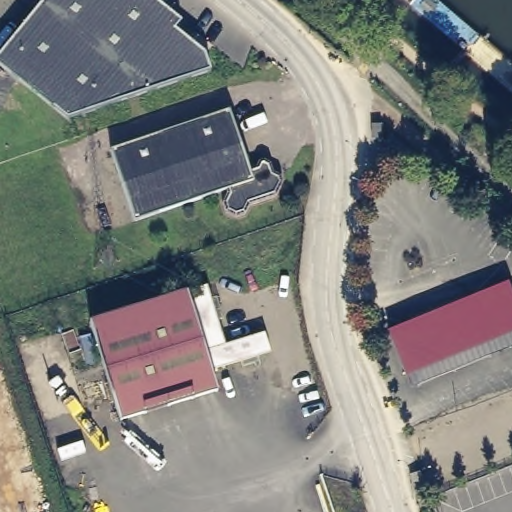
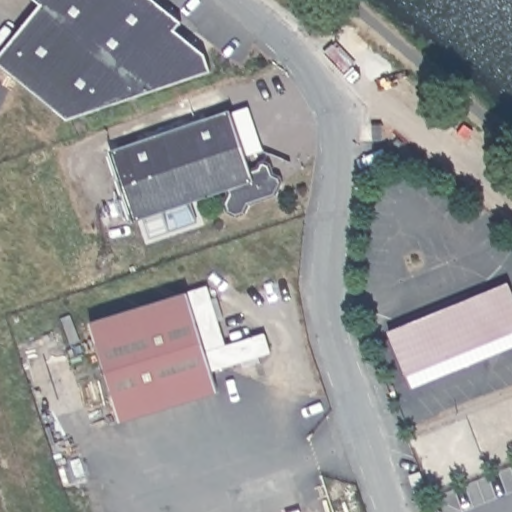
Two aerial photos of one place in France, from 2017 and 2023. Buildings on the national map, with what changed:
unchanged [(176,22),(170,30),(200,54),(206,71),(63,119),(0,68),(0,50),(36,5),(30,0),(149,0),(176,22)]
unchanged [(231,107),(251,164),(258,161),(263,153),(271,155),(273,165),(281,172),(281,180),(274,192),(260,197),(250,198),(245,203),(245,209),(236,211),(224,203),(225,185),(136,216),(113,149),(231,107)]
unchanged [(382,124),(382,139),(372,140),(371,125),(382,124)]
unchanged [(400,364),(383,324),(503,275),(512,298),(512,319),(400,364)]
unchanged [(188,291),(220,392),(122,422),(90,321),(188,291)]
unchanged [(405,377),(400,364),(512,319),(512,334),(405,377)]

